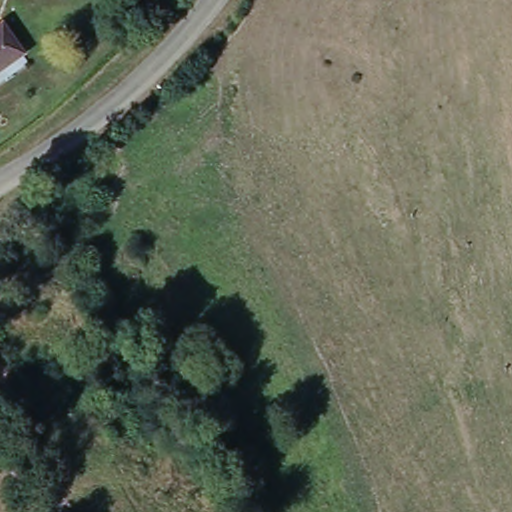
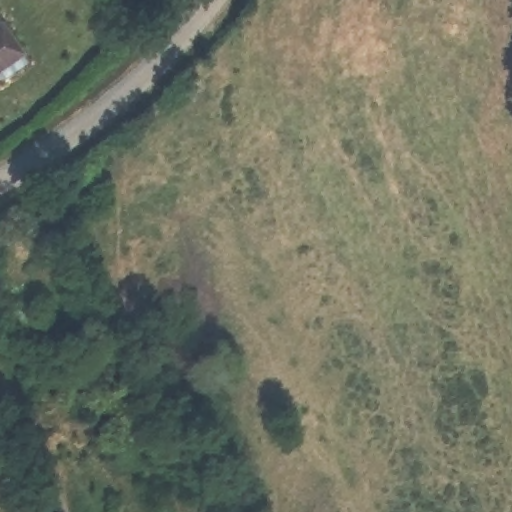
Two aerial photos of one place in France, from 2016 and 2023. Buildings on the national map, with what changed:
unchanged [(0,71),(0,30),(5,26),(24,54),(0,71)]
unchanged [(91,184),(93,191),(68,199),(66,190),(91,184)]

